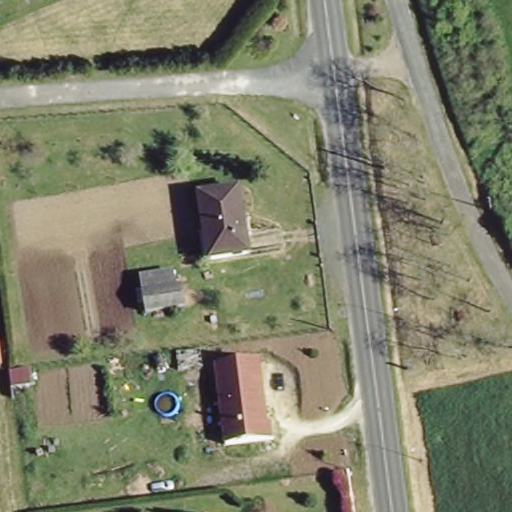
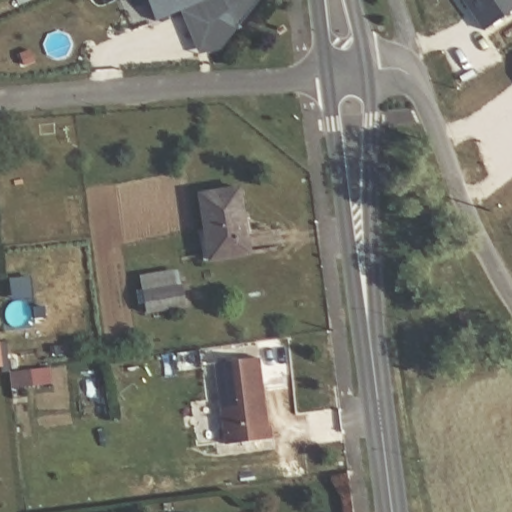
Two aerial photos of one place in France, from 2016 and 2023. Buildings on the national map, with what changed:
new [(201,55),(181,10),(156,22),(147,0),(262,0),(224,49),(201,55)]
new [(463,0),(512,0),(512,12),(485,30),(463,0)]
new [(31,54),(34,63),(24,66),(21,57),(31,54)]
unchanged [(237,186),(247,255),(206,261),(196,192),(237,186)]
unchanged [(136,295),(183,288),(186,308),(139,314),(136,295)]
unchanged [(260,356),(269,438),(223,443),(214,361),(260,356)]

